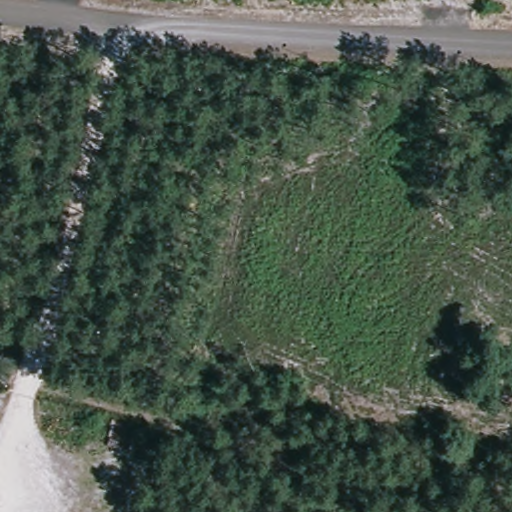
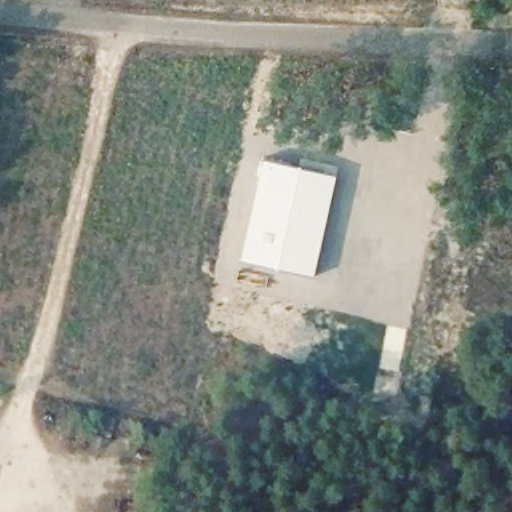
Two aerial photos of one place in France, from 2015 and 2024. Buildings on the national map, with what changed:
new [(262,159),(336,175),(313,275),(240,258),(262,159)]

